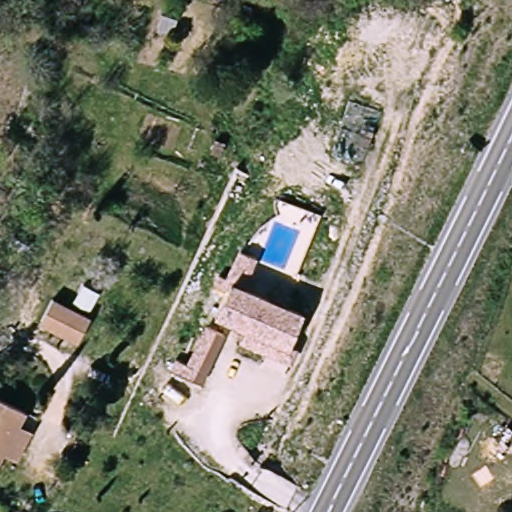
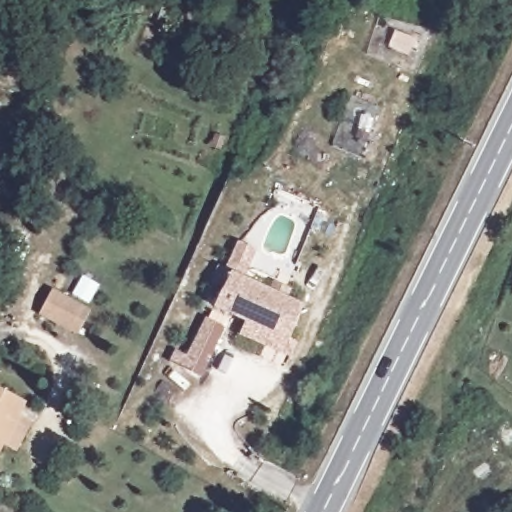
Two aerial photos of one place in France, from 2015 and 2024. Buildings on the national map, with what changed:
unchanged [(291,355),(240,335),(246,321),(217,309),(229,282),(216,277),(220,267),(229,271),(231,267),(240,242),(256,248),(246,275),(244,280),(304,307),(290,338),(297,342),(291,355)]
unchanged [(86,310),(72,334),(39,315),(53,291),(86,310)]
unchanged [(202,379),(169,365),(174,352),(188,358),(205,320),(225,328),(202,379)]
unchanged [(0,397),(18,407),(0,438),(0,397)]

